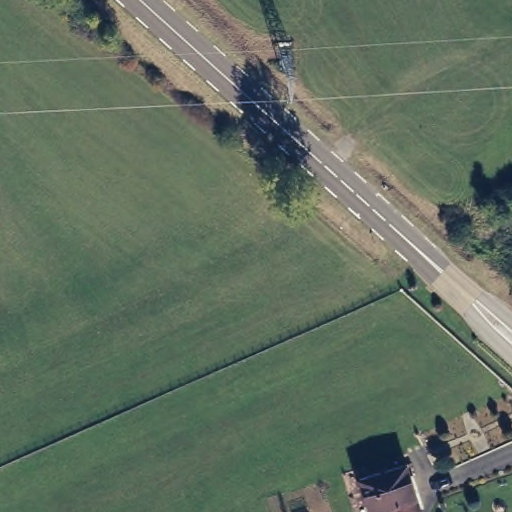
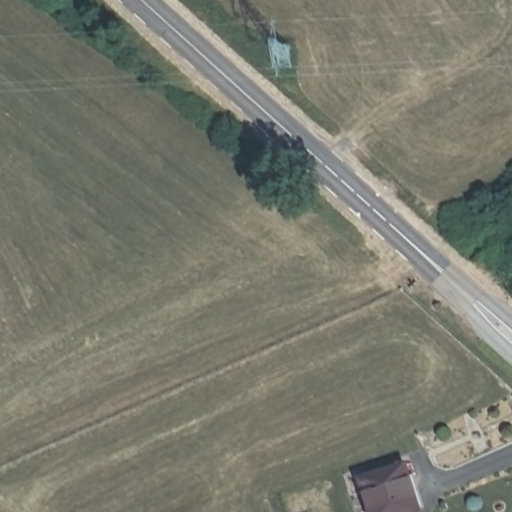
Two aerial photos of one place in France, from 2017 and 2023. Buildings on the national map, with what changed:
unchanged [(289,48),(290,75),(275,75),(275,47),(289,48)]
unchanged [(407,467),(423,512),(374,512),(364,483),(407,467)]

